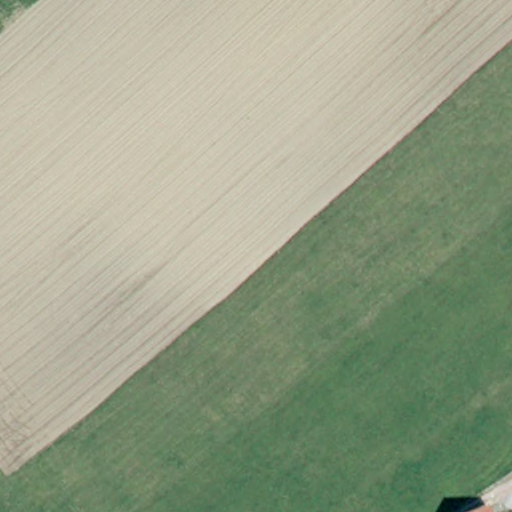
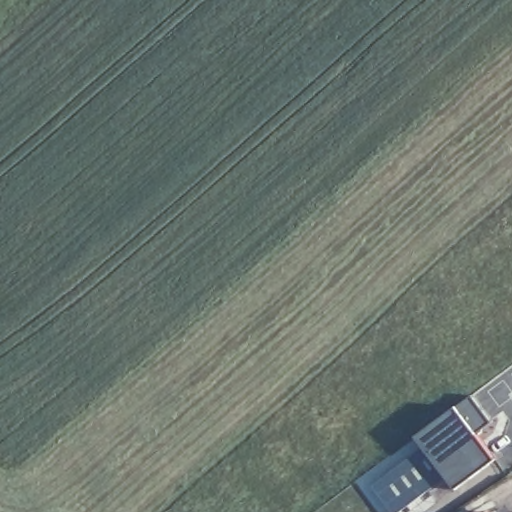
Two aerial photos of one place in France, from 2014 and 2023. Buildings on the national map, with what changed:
new [(492,421),(476,433),(495,458),(456,488),(437,503),(428,490),(399,512),(393,512),(374,485),(425,446),(416,435),(456,406),(472,395),(492,421)]
unchanged [(492,508),(494,512),(485,512),(492,508)]

